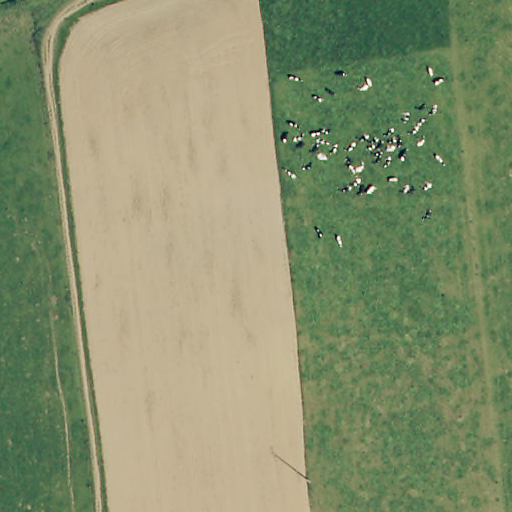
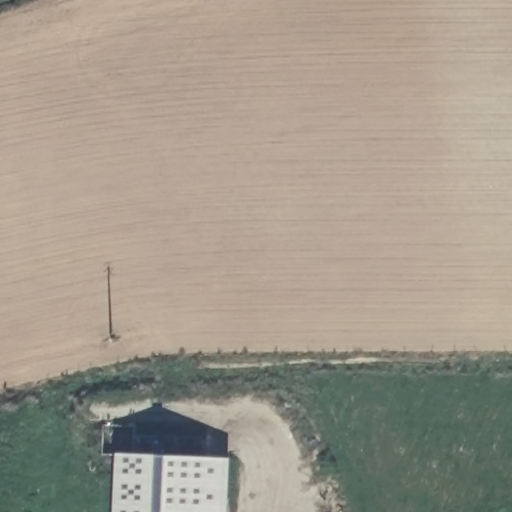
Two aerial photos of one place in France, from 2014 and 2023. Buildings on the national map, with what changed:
new [(226,512),(112,512),(115,453),(229,459),(226,512)]

